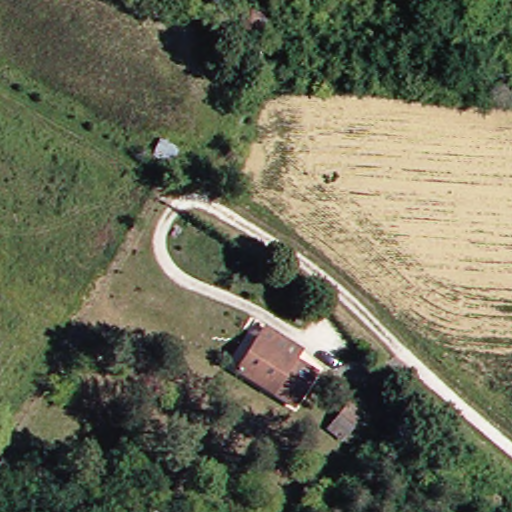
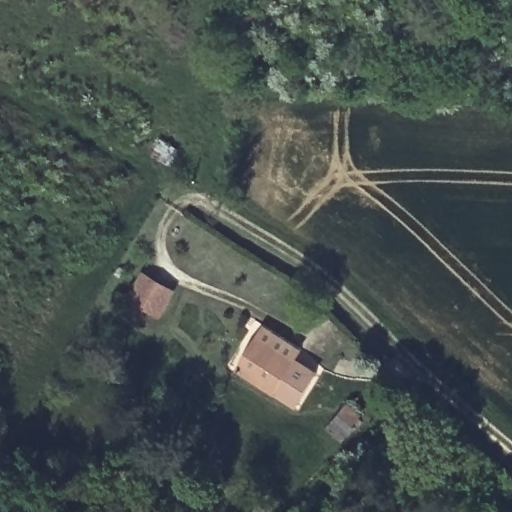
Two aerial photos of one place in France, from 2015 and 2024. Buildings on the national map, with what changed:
unchanged [(256,36),(275,41),(271,64),(247,57),(256,36)]
new [(161,321),(127,302),(145,272),(178,291),(161,321)]
unchanged [(279,397),(243,375),(265,341),(301,361),(279,397)]

